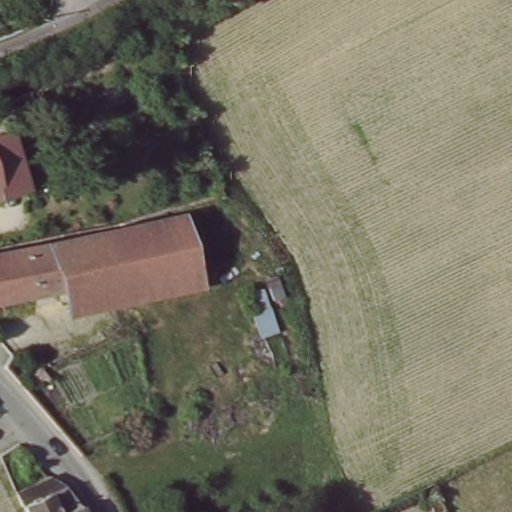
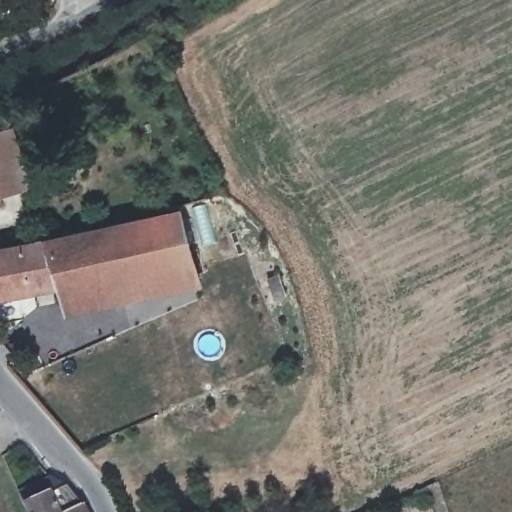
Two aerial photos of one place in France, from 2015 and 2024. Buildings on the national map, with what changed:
unchanged [(2,136),(13,133),(25,177),(27,186),(0,194),(0,137),(2,136)]
unchanged [(99,286),(58,294),(55,279),(0,290),(0,246),(24,241),(95,229),(133,224),(145,222),(183,217),(197,268),(99,286)]
unchanged [(198,270),(201,283),(104,301),(99,286),(197,268),(198,270)]
unchanged [(64,487),(69,490),(72,495),(84,509),(85,512),(25,512),(22,505),(64,487)]

